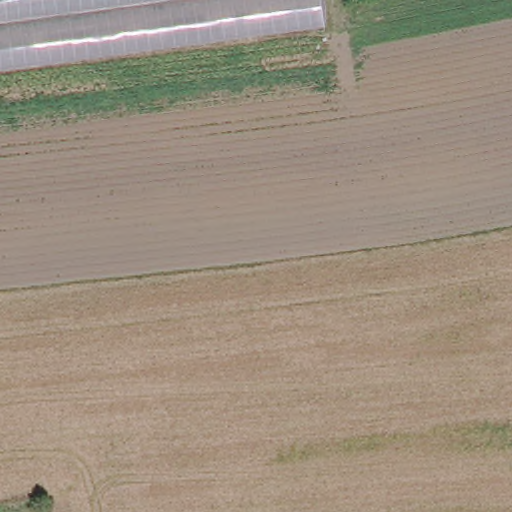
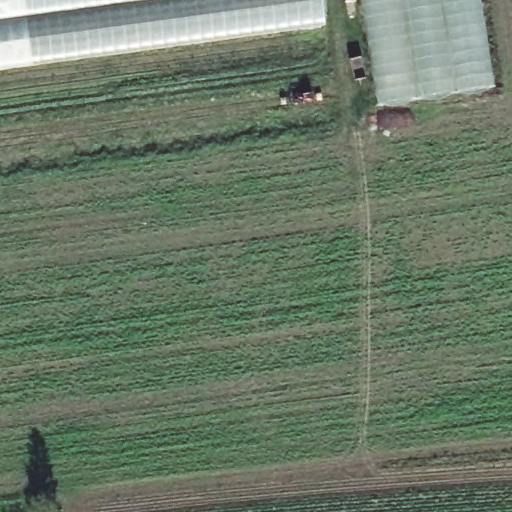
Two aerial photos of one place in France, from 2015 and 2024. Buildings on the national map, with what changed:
unchanged [(0,71),(0,0),(319,0),(323,28),(0,71)]
new [(360,0),(479,0),(493,89),(377,106),(360,0)]

